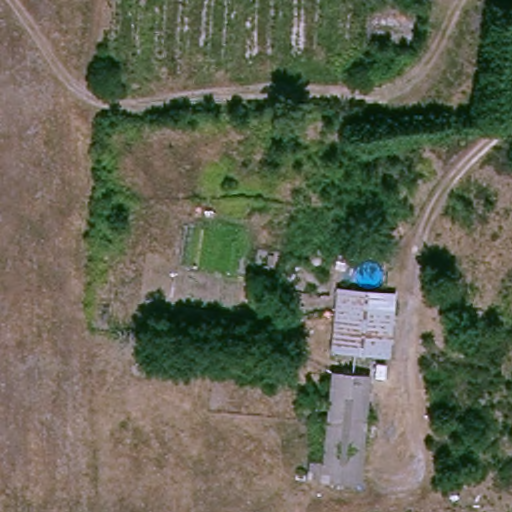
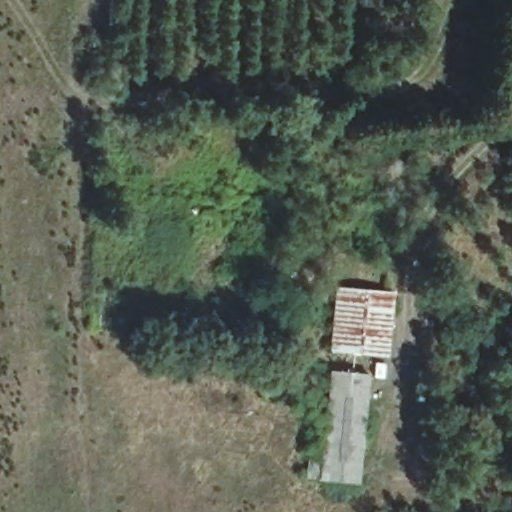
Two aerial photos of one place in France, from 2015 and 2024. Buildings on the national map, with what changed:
unchanged [(388,354),(329,350),(333,285),(396,288),(388,354)]
unchanged [(372,372),(361,477),(320,474),(334,368),(372,372)]

